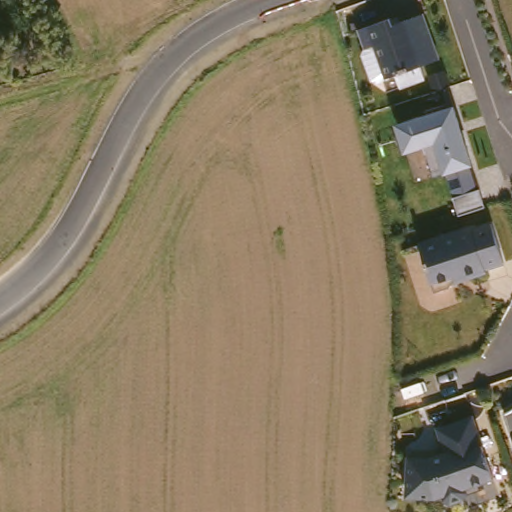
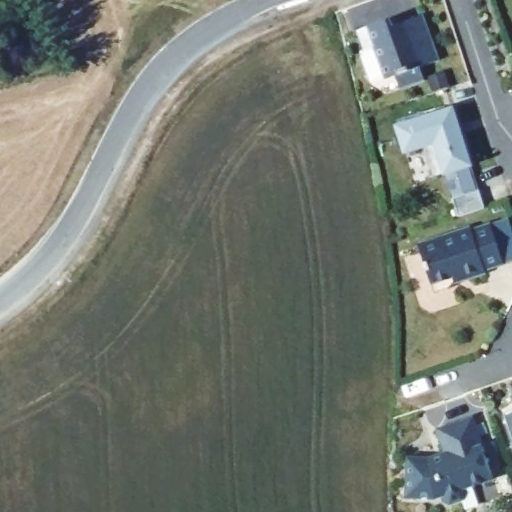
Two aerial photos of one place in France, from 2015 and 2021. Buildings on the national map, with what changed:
unchanged [(389,19),(393,24),(417,17),(433,60),(416,66),(421,81),(397,89),(390,76),(382,78),(366,83),(353,55),(359,49),(352,32),(389,19)]
unchanged [(448,107),(470,166),(439,174),(429,147),(400,154),(390,125),(448,107)]
unchanged [(482,220),(497,264),(433,290),(417,241),(482,220)]
unchanged [(512,448),(501,416),(512,402),(512,448)]
unchanged [(469,409),(494,483),(465,490),(461,502),(402,496),(405,450),(434,451),(441,447),(433,422),(469,409)]

